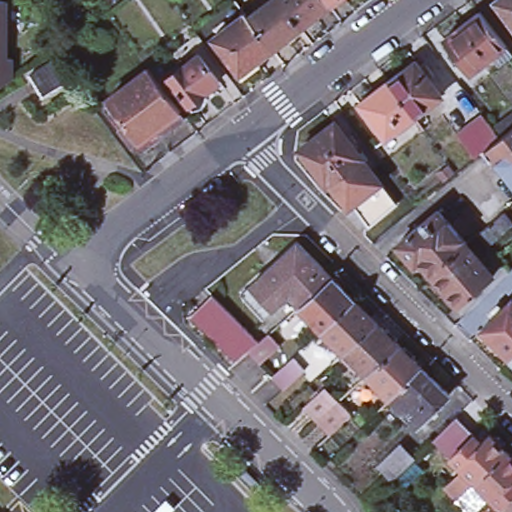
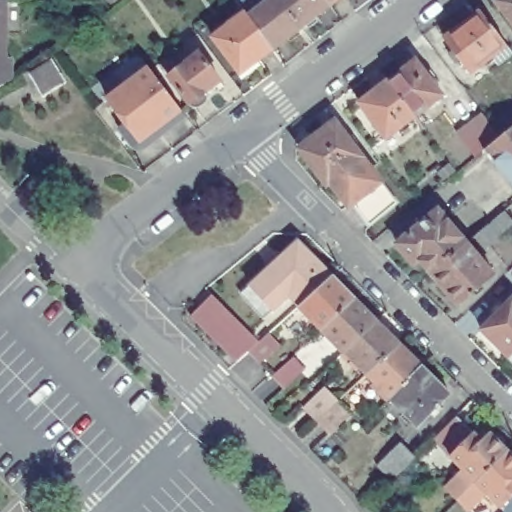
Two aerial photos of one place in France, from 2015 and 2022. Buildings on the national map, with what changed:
unchanged [(0,56),(7,56),(6,78),(0,81),(0,0),(0,56)]
unchanged [(250,20),(276,0),(279,0),(303,31),(275,52),(250,20)]
unchanged [(303,31),(279,0),(326,0),(332,9),(303,31)]
unchanged [(332,9),(326,0),(343,0),(332,9)]
unchanged [(497,0),(512,0),(512,26),(494,3),(497,0)]
unchanged [(493,63),(487,54),(465,71),(439,36),(475,9),(508,52),(493,63)]
unchanged [(215,41),(247,16),(250,20),(275,52),(242,76),(215,41)]
unchanged [(175,76),(207,52),(227,79),(212,89),(217,95),(200,108),(175,76)]
unchanged [(415,113),(388,78),(415,58),(442,93),(415,113)]
unchanged [(45,99),(32,77),(53,62),(67,84),(45,99)]
unchanged [(147,139),(115,97),(155,66),(187,108),(147,139)]
unchanged [(385,135),(382,130),(380,131),(368,114),(370,114),(360,100),(388,78),(415,113),(385,135)]
unchanged [(322,178),(300,148),(300,135),(330,113),(357,150),(325,175),(322,178)]
unchanged [(455,135),(468,124),(481,113),(495,131),(512,117),(512,182),(486,151),(475,161),(455,135)]
unchanged [(348,196),(344,199),(325,175),(357,150),(392,196),(365,217),(348,196)]
unchanged [(415,258),(410,262),(392,241),(435,206),(462,240),(427,271),(415,258)]
unchanged [(243,292),(252,283),(269,268),(286,253),(300,240),(335,274),(300,304),(290,294),(274,308),(265,316),(243,292)]
unchanged [(490,273),(453,304),(427,271),(462,240),(490,273)]
unchanged [(335,274),(357,296),(331,319),(322,327),(300,304),(335,274)]
unchanged [(250,362),(238,350),(236,351),(227,360),(181,314),(202,293),(250,340),(259,331),(270,344),(250,362)]
unchanged [(331,319),(357,296),(379,319),(377,321),(345,350),(322,327),(331,319)]
unchanged [(512,354),(510,356),(482,328),(512,298),(512,354)]
unchanged [(401,341),(367,372),(362,366),(359,368),(342,352),(345,350),(377,321),(379,319),(401,341)]
unchanged [(410,378),(392,396),(380,384),(377,386),(372,381),(373,378),(367,372),(401,341),(423,363),(410,378)]
unchanged [(512,354),(512,357),(510,356),(512,354)]
unchanged [(305,372),(285,391),(273,379),(295,359),(305,372)]
unchanged [(392,396),(410,378),(423,363),(452,391),(419,423),(392,396)]
unchanged [(330,436),(317,423),(304,410),(327,388),(340,402),(352,416),(330,436)]
unchanged [(443,489),(460,472),(429,442),(433,438),(452,419),(470,436),(479,444),(487,436),(488,438),(490,437),(495,437),(502,443),(501,451),(503,452),(505,454),(512,454),(512,477),(512,502),(502,512),(500,512),(484,496),(468,512),(466,512),(455,501),(443,489)]
unchanged [(382,464),(400,446),(415,461),(398,479),(382,464)]
unchanged [(512,512),(502,512),(512,502),(512,512)]

